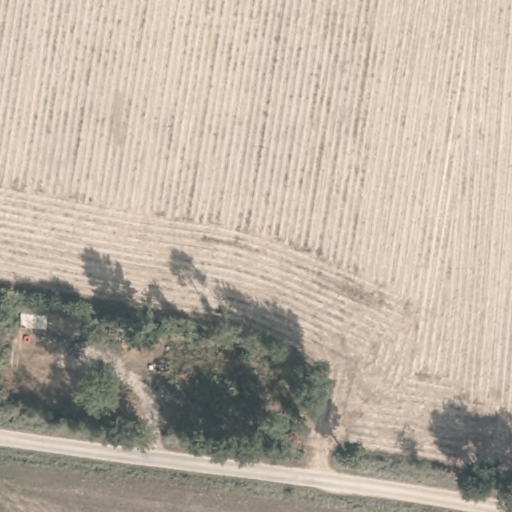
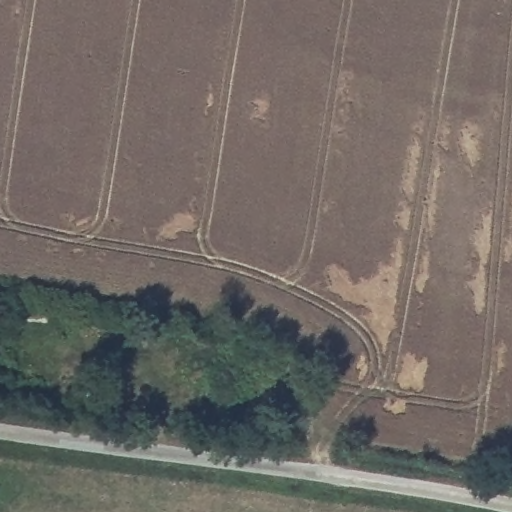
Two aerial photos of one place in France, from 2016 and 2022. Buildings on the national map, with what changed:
unchanged [(23,307),(52,307),(53,324),(22,324),(23,307)]

